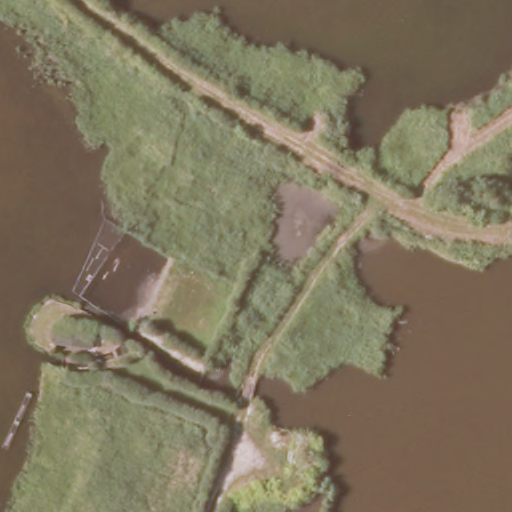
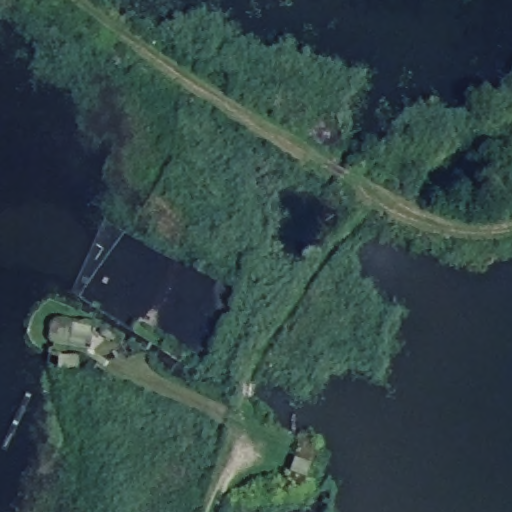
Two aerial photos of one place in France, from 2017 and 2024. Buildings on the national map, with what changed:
unchanged [(52,335),(45,330),(47,320),(52,315),(67,315),(65,336),(52,335)]

